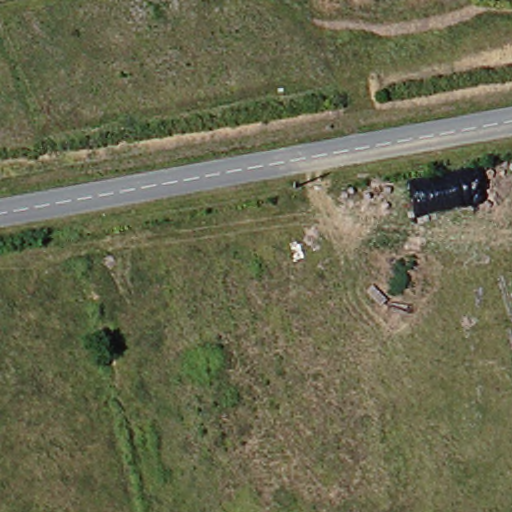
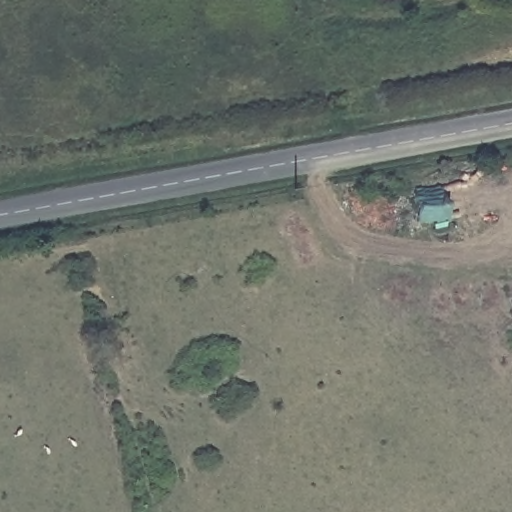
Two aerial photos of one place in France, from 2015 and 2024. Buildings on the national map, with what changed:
[]

